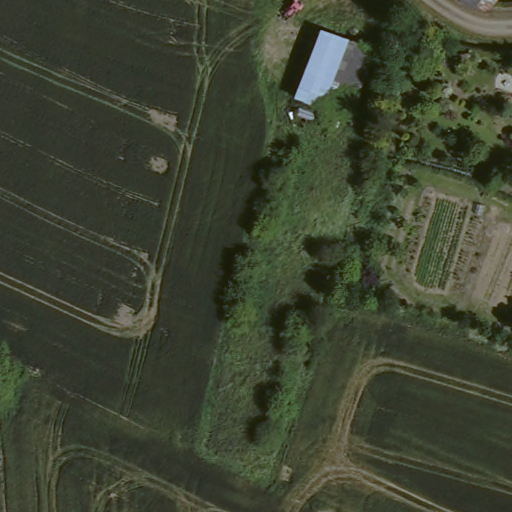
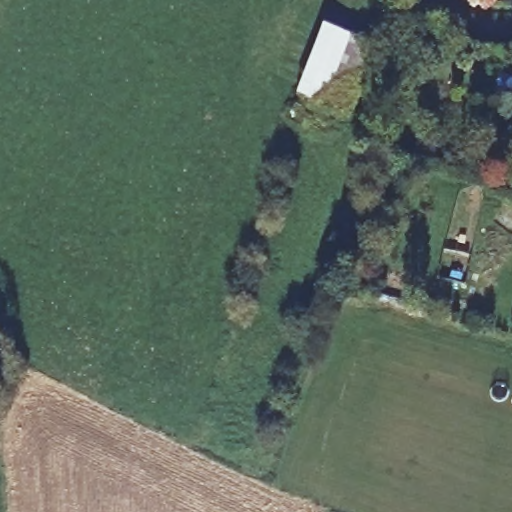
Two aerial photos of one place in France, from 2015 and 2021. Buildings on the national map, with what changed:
unchanged [(484,12),(474,4),(469,1),(469,0),(493,0),(484,12)]
unchanged [(305,59),(314,35),(338,43),(362,52),(337,117),(314,107),(289,98),(305,59)]

